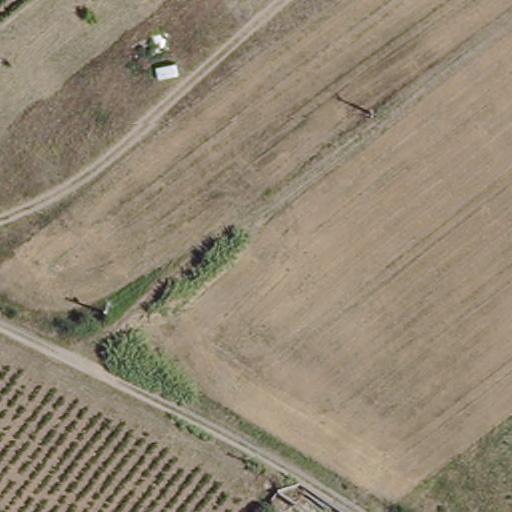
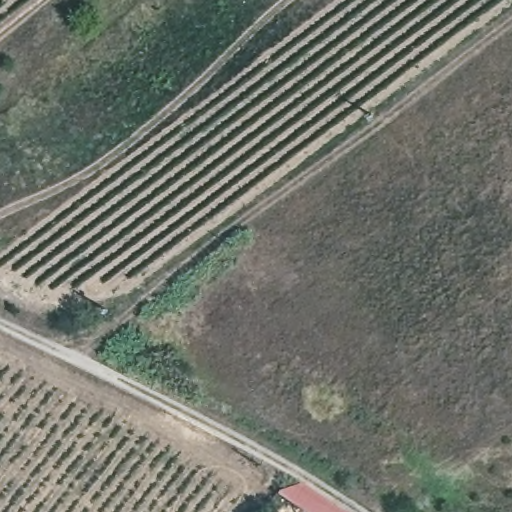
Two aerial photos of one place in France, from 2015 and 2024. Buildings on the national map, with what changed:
new [(279,490),(301,483),(343,512),(304,512),(277,493),(279,490)]

